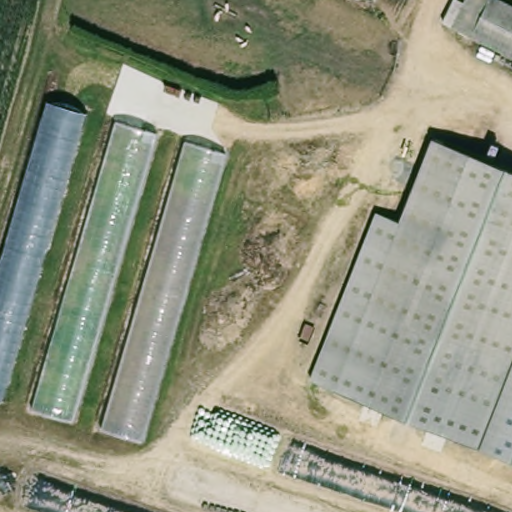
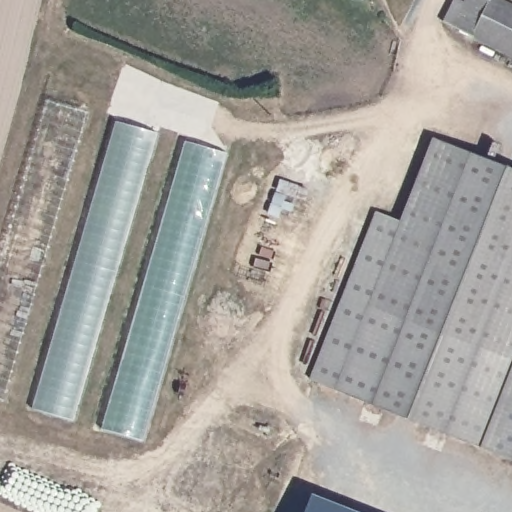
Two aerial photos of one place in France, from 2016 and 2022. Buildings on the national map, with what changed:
unchanged [(512,1),(512,54),(451,24),(443,20),(451,0),(510,0),(512,1)]
unchanged [(0,397),(0,260),(45,103),(84,113),(3,398),(0,397)]
unchanged [(115,124),(155,135),(74,422),(34,406),(115,124)]
unchanged [(511,368),(369,312),(403,227),(436,142),(512,173),(512,365),(511,368)]
unchanged [(186,144),(225,154),(144,441),(103,428),(186,144)]
unchanged [(477,452),(310,385),(376,217),(403,227),(369,312),(511,368),(477,452)]
unchanged [(477,452),(511,368),(512,365),(512,465),(477,452)]
new [(356,512),(303,512),(310,494),(356,512)]

